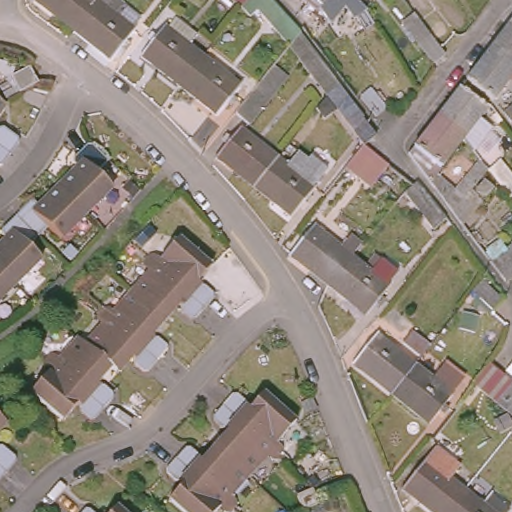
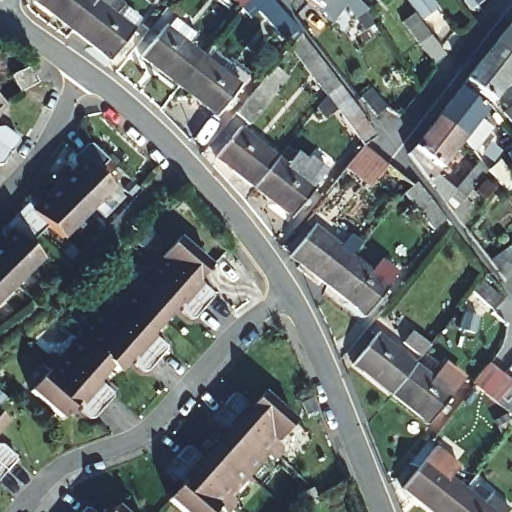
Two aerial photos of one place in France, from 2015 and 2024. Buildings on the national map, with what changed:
unchanged [(29,4),(32,0),(82,0),(89,5),(66,34),(29,4)]
unchanged [(235,0),(246,0),(242,5),(235,0)]
unchanged [(249,0),(270,0),(285,17),(273,28),(249,0)]
unchanged [(304,0),(325,0),(317,10),(304,0)]
unchanged [(373,23),(364,8),(355,0),(377,0),(386,12),(373,23)]
unchanged [(108,21),(116,11),(133,25),(125,35),(128,37),(105,65),(66,34),(89,5),(108,21)]
unchanged [(413,10),(425,25),(440,47),(446,55),(435,63),(402,18),(413,10)]
unchanged [(512,22),(512,69),(488,49),(510,20),(512,22)]
unchanged [(197,62),(173,91),(135,61),(158,32),(161,34),(170,23),(190,41),(183,51),(197,62)]
unchanged [(512,69),(512,76),(492,102),(465,80),(488,49),(512,69)]
unchanged [(358,179),(345,168),(363,145),(340,117),(327,130),(312,112),(325,95),(312,77),(317,74),(307,62),(317,56),(338,86),(362,118),(360,120),(375,136),(364,145),(376,156),(358,179)]
unchanged [(235,92),(212,122),(173,91),(197,62),(235,92)]
unchanged [(28,66),(37,83),(18,92),(10,75),(28,66)]
unchanged [(392,99),(382,108),(365,88),(377,79),(392,99)]
unchanged [(492,109),(485,118),(497,127),(478,150),(470,138),(442,117),(465,87),(492,109)]
unchanged [(247,129),(233,117),(253,93),(267,105),(247,129)]
unchanged [(435,181),(415,153),(442,117),(470,138),(435,181)]
unchanged [(12,137),(5,147),(0,154),(0,124),(12,133),(12,137)]
unchanged [(215,161),(237,133),(275,163),(252,192),(215,161)]
unchanged [(450,200),(483,162),(485,159),(482,154),(478,150),(495,137),(512,159),(512,194),(493,170),(458,210),(450,200)]
unchanged [(2,233),(2,229),(15,215),(31,200),(35,200),(39,203),(58,184),(77,165),(73,161),(73,157),(88,143),(93,143),(109,159),(97,172),(112,188),(85,213),(60,238),(47,225),(36,236),(27,245),(40,258),(14,283),(0,297),(0,242),(5,236),(2,233)]
unchanged [(312,192),(313,194),(290,223),(252,192),(275,163),(295,180),(303,170),(319,183),(312,192)]
unchanged [(452,217),(439,227),(416,198),(408,207),(402,200),(410,189),(417,184),(423,180),(452,217)]
unchanged [(491,196),(484,190),(492,180),(498,187),(491,196)]
unchanged [(322,285),(285,254),(308,226),(335,248),(345,235),(355,243),(345,256),(322,285)]
unchanged [(141,252),(153,256),(172,235),(203,264),(187,282),(195,283),(204,290),(203,299),(197,307),(138,255),(141,252)]
unchanged [(507,275),(493,257),(512,243),(512,271),(507,275)]
unchanged [(141,269),(135,264),(135,259),(138,255),(197,307),(187,317),(182,317),(171,308),(171,300),(155,317),(123,289),(141,269)]
unchanged [(365,272),(375,260),(391,273),(382,286),(384,288),(360,316),(352,311),(322,285),(345,256),(365,272)]
unchanged [(503,299),(492,312),(473,292),(485,280),(503,299)]
unchanged [(155,317),(138,336),(149,335),(157,343),(158,349),(148,359),(92,307),(93,305),(100,305),(105,309),(123,289),(155,317)]
unchanged [(148,359),(136,371),(127,363),(125,351),(107,370),(102,365),(75,341),(93,322),(88,317),(87,311),(92,307),(148,359)]
unchanged [(430,374),(421,366),(417,372),(410,366),(414,361),(397,347),(407,335),(423,349),(422,351),(438,363),(430,374)]
unchanged [(87,382),(95,381),(104,390),(103,397),(95,406),(38,355),(43,350),(52,354),(70,336),(75,341),(102,365),(87,382)]
unchanged [(385,399),(347,368),(370,339),(407,370),(385,399)]
unchanged [(95,406),(84,417),(79,417),(72,411),(70,400),(53,417),(22,388),(40,369),(35,364),(35,358),(38,355),(95,406)]
unchanged [(505,407),(495,398),(483,388),(473,380),(472,379),(488,358),(500,367),(512,376),(512,377),(512,413),(505,407)]
unchanged [(427,386),(436,375),(452,388),(442,398),(445,401),(422,430),(385,399),(407,370),(427,386)]
unchanged [(275,441),(280,447),(281,452),(277,457),(220,403),(229,394),(235,393),(244,401),(244,410),(262,392),(293,421),(275,441)]
unchanged [(277,457),(275,459),(269,458),(265,454),(245,475),(213,445),(231,427),(218,425),(212,420),(211,412),(220,403),(277,457)]
unchanged [(0,422),(0,419),(2,420),(0,422)]
unchanged [(12,459),(2,470),(0,468),(0,443),(11,452),(12,459)]
unchanged [(228,493),(233,499),(233,504),(230,508),(172,457),(181,447),(189,447),(197,454),(197,464),(213,445),(245,475),(228,493)]
unchanged [(456,485),(436,512),(430,512),(395,484),(418,455),(456,485)]
unchanged [(230,508),(228,510),(221,510),(217,506),(212,512),(181,512),(165,498),(183,480),(173,480),(163,471),(163,466),(172,457),(230,508)]
unchanged [(0,473),(0,468),(2,470),(0,473)]
unchanged [(475,500),(483,491),(503,506),(499,512),(436,512),(456,485),(475,500)]
unchanged [(322,503),(305,509),(299,494),(315,487),(322,503)]
unchanged [(115,510),(117,512),(113,512),(115,510)]
unchanged [(82,512),(88,511),(89,512),(81,512),(82,512)]

